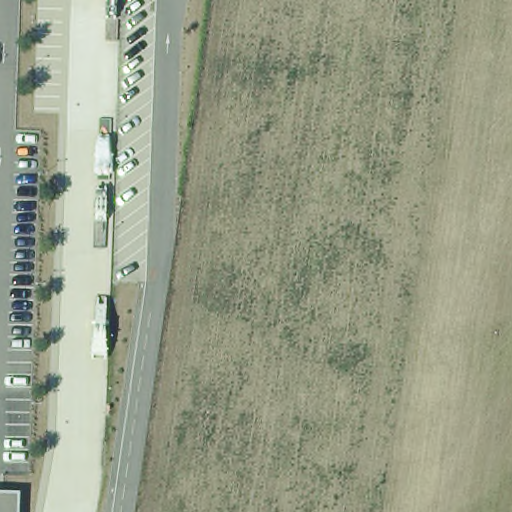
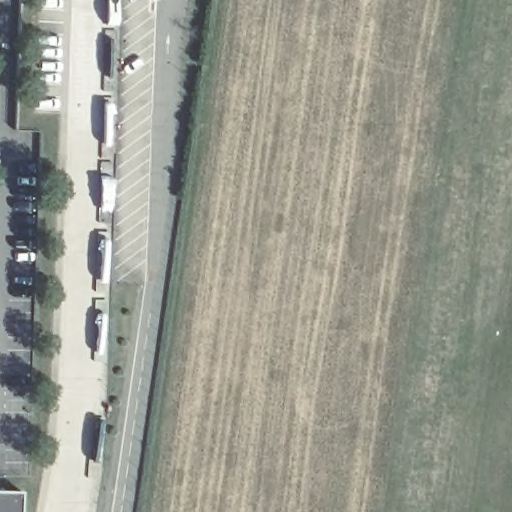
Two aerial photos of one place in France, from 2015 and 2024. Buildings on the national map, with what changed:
unchanged [(0,490),(20,491),(20,512),(0,512),(0,490)]

